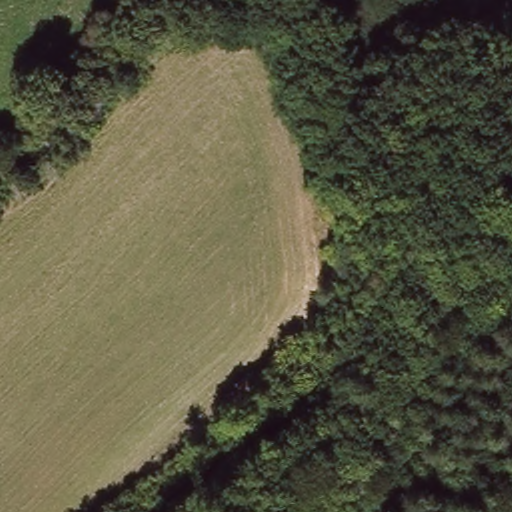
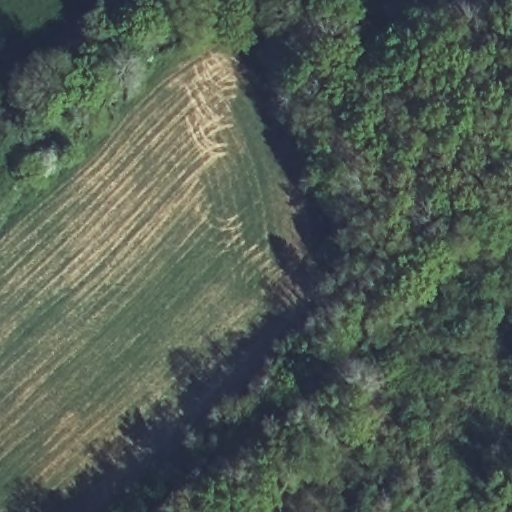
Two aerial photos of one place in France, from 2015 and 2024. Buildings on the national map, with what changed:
[]

